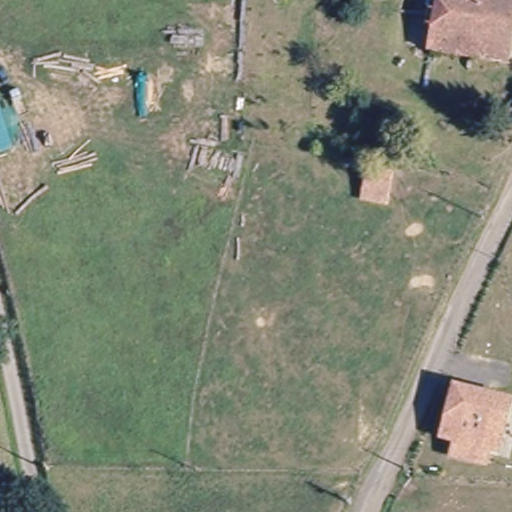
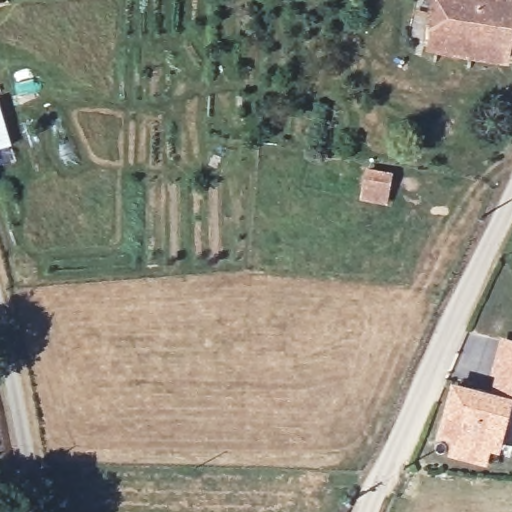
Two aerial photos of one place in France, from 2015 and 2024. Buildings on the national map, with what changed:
unchanged [(498,59),(429,44),(437,0),(512,0),(498,59)]
new [(13,146),(0,149),(0,100),(13,146)]
new [(491,392),(495,377),(491,376),(501,337),(512,340),(512,397),(508,396),(491,392)]
unchanged [(447,457),(451,437),(439,433),(452,383),(508,396),(496,448),(481,445),(476,463),(447,457)]

